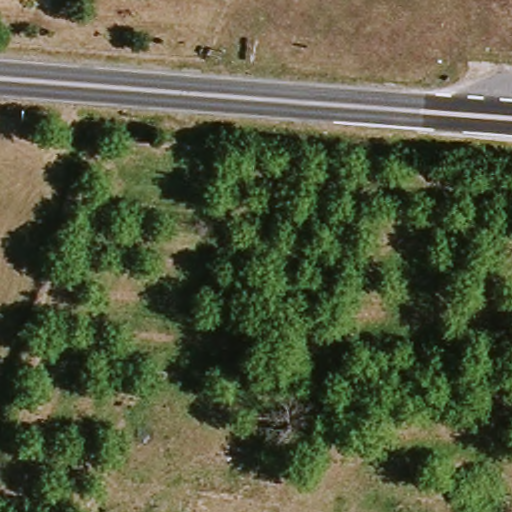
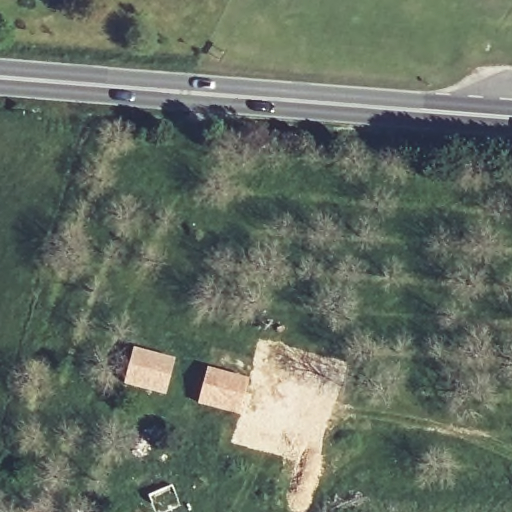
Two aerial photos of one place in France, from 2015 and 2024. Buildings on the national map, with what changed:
new [(175,360),(166,396),(123,386),(133,349),(175,360)]
new [(247,380),(240,415),(197,405),(207,369),(247,380)]

